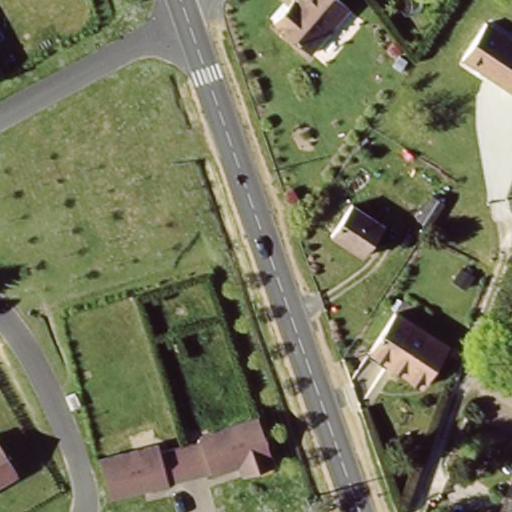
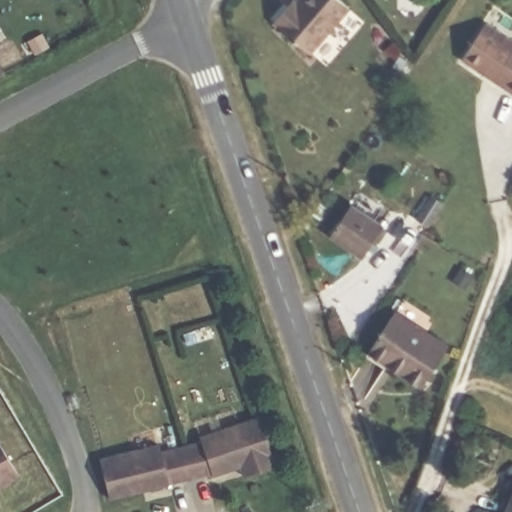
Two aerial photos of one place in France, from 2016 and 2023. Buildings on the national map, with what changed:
unchanged [(344,10),(304,54),(268,20),(283,4),(286,0),(291,0),(292,1),(293,0),(334,0),(344,10)]
unchanged [(462,58),(487,20),(512,37),(512,92),(462,58)]
unchanged [(0,74),(0,62),(5,72),(0,74)]
unchanged [(425,230),(412,221),(432,191),(436,194),(444,200),(425,230)]
unchanged [(356,209),(387,229),(367,260),(336,240),(356,209)]
unchanged [(365,355),(368,350),(394,309),(396,310),(423,327),(448,345),(423,384),(387,361),(383,366),(365,355)]
unchanged [(276,465),(241,475),(238,464),(213,472),(169,482),(109,497),(100,456),(158,442),(160,450),(201,440),(199,433),(259,415),(276,465)]
unchanged [(0,444),(18,473),(0,484),(0,444)]
unchanged [(507,512),(512,502),(512,512),(507,512)]

